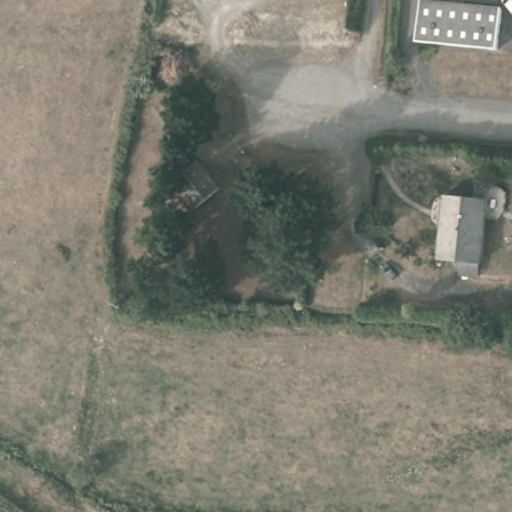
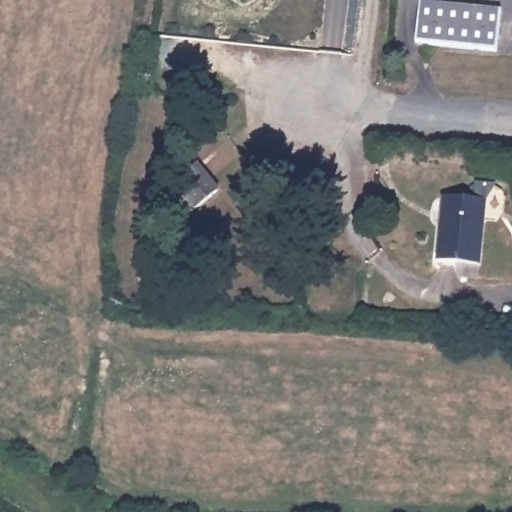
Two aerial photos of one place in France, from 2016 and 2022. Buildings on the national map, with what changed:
unchanged [(419,0),(444,0),(501,5),(497,45),(416,38),(419,0)]
unchanged [(171,178),(194,159),(216,186),(192,206),(171,178)]
unchanged [(440,259),(445,195),(486,200),(480,263),(440,259)]

